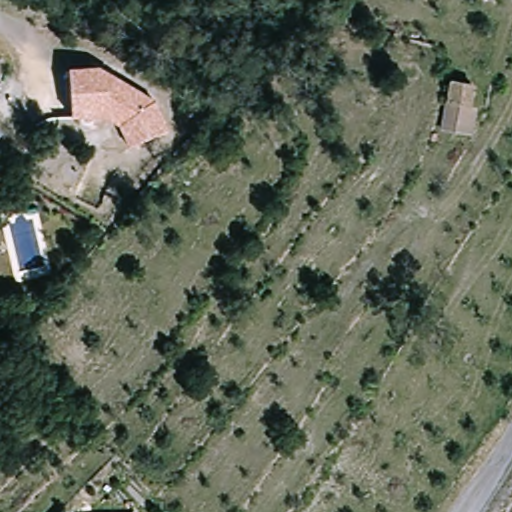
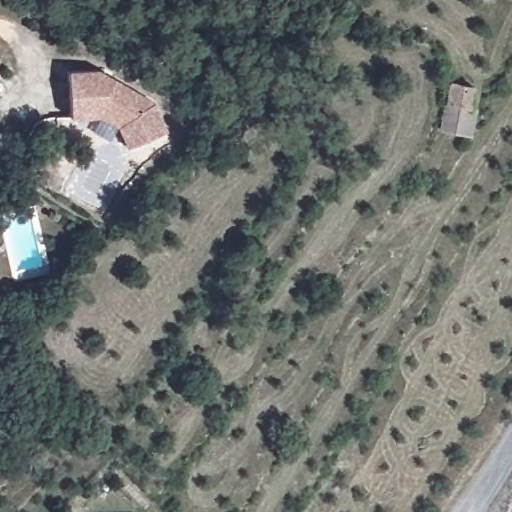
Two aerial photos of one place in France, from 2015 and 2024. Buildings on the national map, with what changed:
unchanged [(98,67),(151,101),(165,131),(126,147),(119,130),(130,125),(128,118),(104,103),(90,104),(91,115),(71,117),(69,70),(98,67)]
unchanged [(470,111),(467,137),(443,134),(453,82),(470,84),(467,111),(470,111)]
unchanged [(0,138),(0,135),(2,136),(0,138)]

